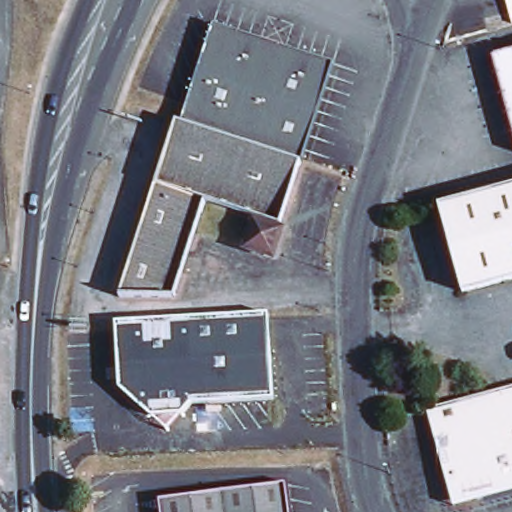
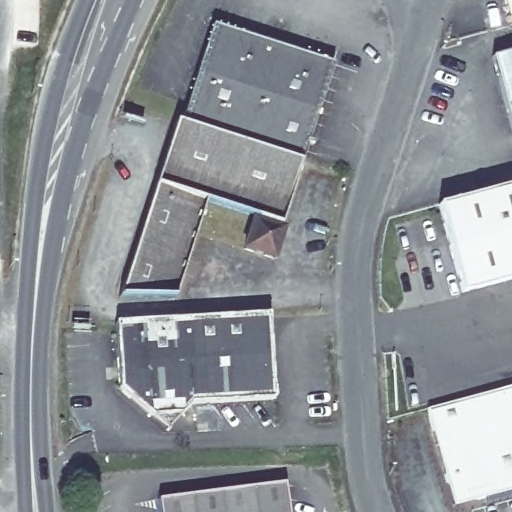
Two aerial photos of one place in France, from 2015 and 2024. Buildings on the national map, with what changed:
unchanged [(194,125),(226,28),(346,67),(315,163),(194,125)]
unchanged [(512,79),(506,55),(512,54),(512,79)]
unchanged [(194,125),(315,163),(294,225),(219,204),(189,296),(130,298),(187,122),(194,125)]
unchanged [(512,281),(474,291),(451,204),(512,187),(512,281)]
unchanged [(295,230),(287,257),(258,249),(267,222),(295,230)]
unchanged [(281,312),(283,398),(202,402),(191,411),(159,411),(129,385),(127,318),(281,312)]
unchanged [(440,405),(512,387),(512,491),(491,496),(467,502),(461,480),(440,405)]
unchanged [(301,512),(172,512),(171,498),(298,482),(301,512)]

